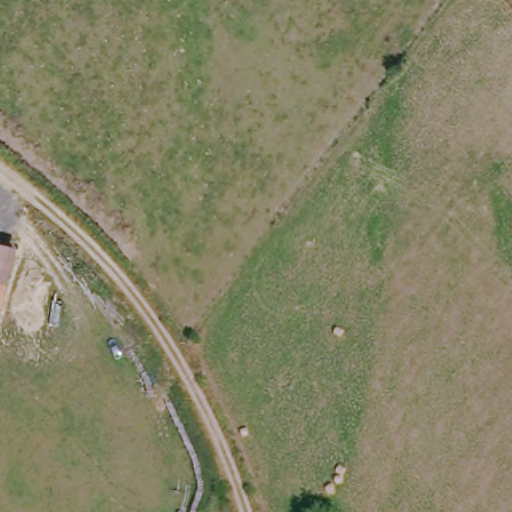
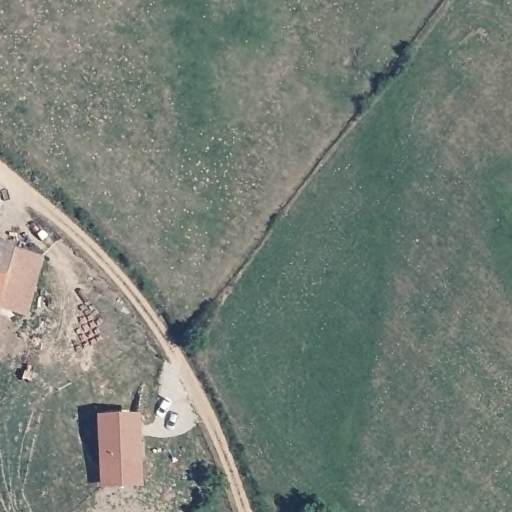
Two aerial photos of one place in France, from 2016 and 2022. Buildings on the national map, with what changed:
unchanged [(15,249),(0,309),(0,245),(15,249)]
new [(0,310),(0,308),(15,249),(45,256),(29,318),(0,310)]
new [(99,417),(141,414),(143,461),(101,463),(99,417)]

